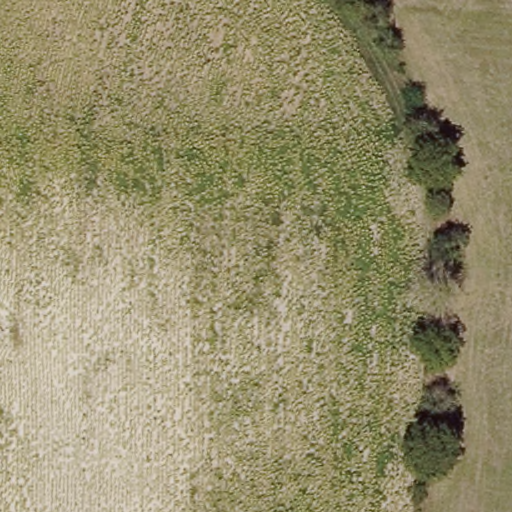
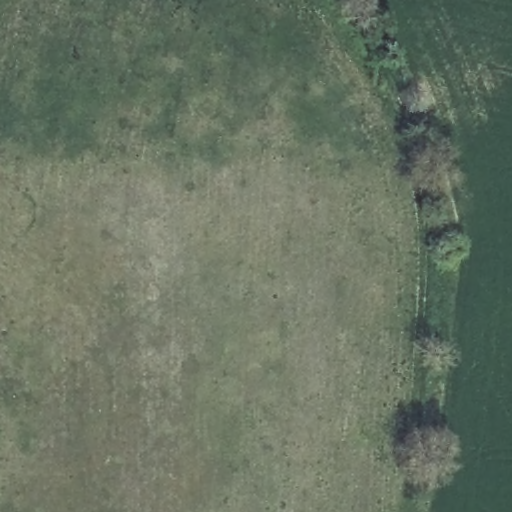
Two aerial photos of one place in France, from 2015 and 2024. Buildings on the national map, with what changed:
[]

